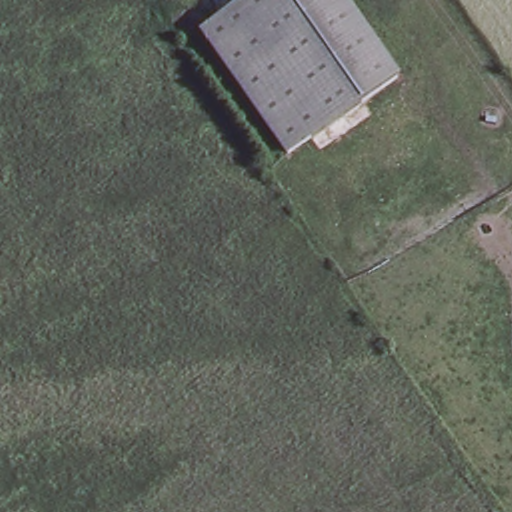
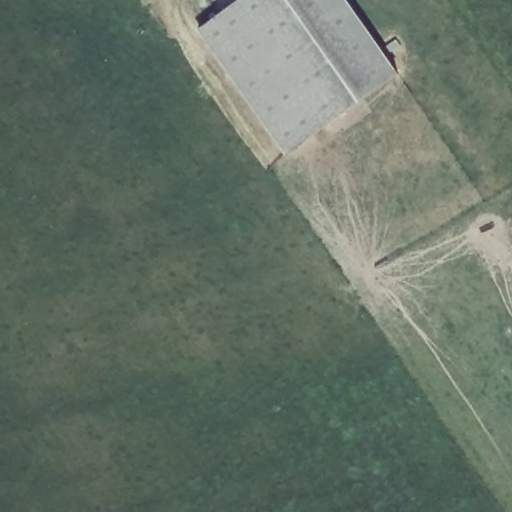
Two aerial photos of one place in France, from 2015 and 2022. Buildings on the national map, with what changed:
unchanged [(237,0),(351,0),(399,69),(287,149),(200,26),(237,0)]

